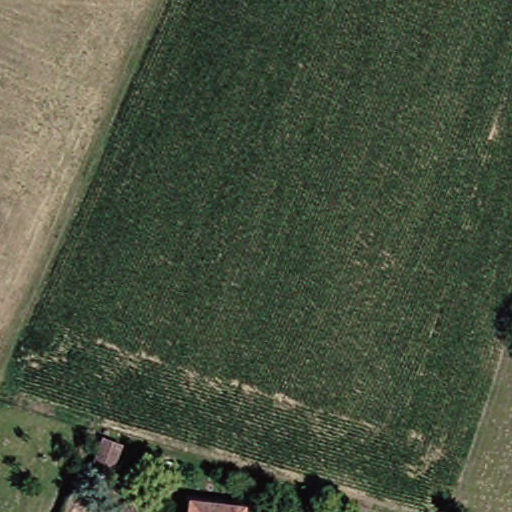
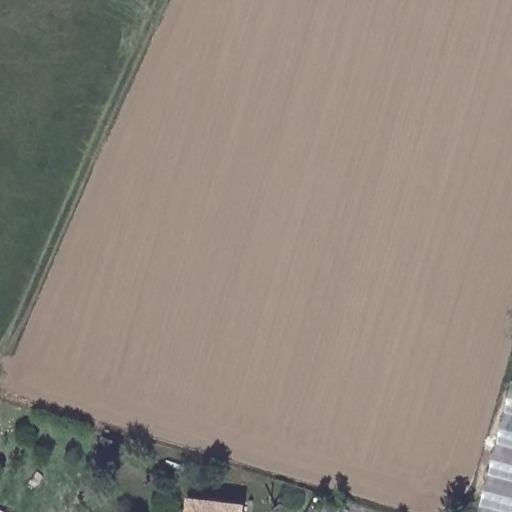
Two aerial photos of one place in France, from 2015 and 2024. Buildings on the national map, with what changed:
new [(512,385),(512,512),(477,512),(512,385)]
unchanged [(240,512),(189,512),(191,497),(241,504),(240,512)]

